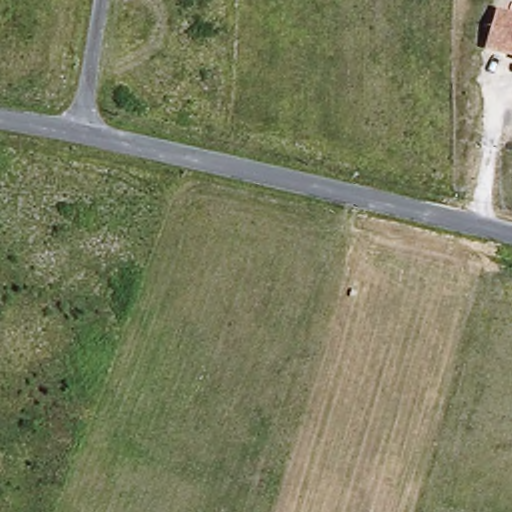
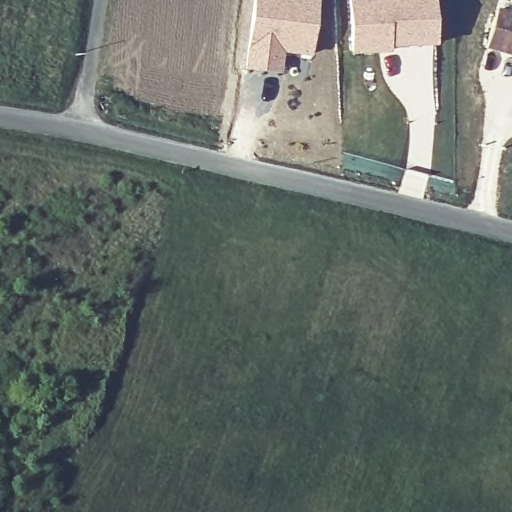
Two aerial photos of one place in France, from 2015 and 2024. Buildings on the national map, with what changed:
new [(316,0),(308,56),(281,53),(279,74),(243,68),(253,0),(316,0)]
new [(349,0),(433,0),(434,45),(388,45),(388,52),(350,54),(349,0)]
unchanged [(512,13),(512,53),(492,47),(502,10),(512,13)]

